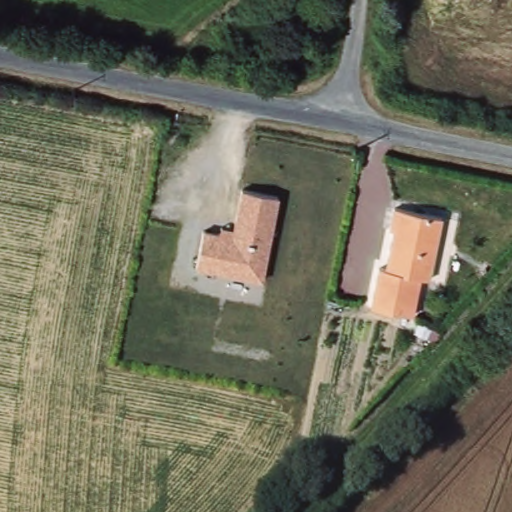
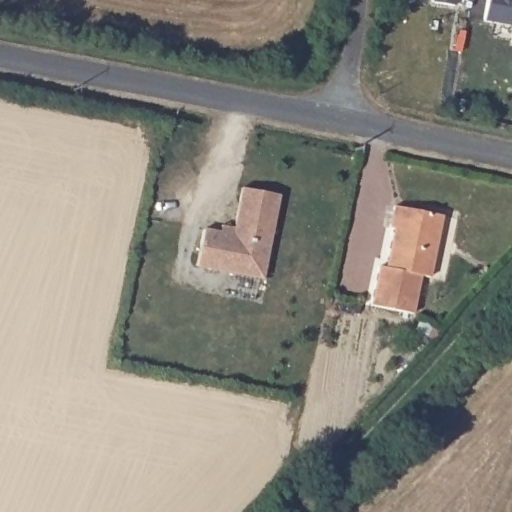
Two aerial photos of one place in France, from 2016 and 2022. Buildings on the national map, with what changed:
new [(433,1),(433,0),(454,0),(453,5),(433,1)]
new [(512,0),(512,23),(476,16),(479,0),(512,0)]
unchanged [(278,194),(262,277),(197,266),(203,225),(234,227),(242,186),(278,194)]
unchanged [(418,280),(411,315),(370,305),(378,265),(390,266),(397,234),(393,231),(398,209),(443,219),(427,282),(418,280)]

